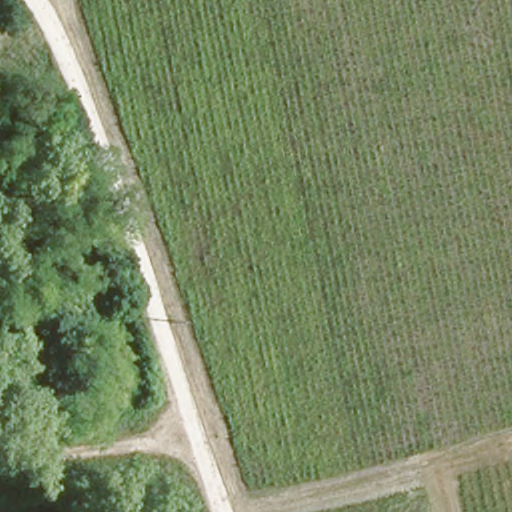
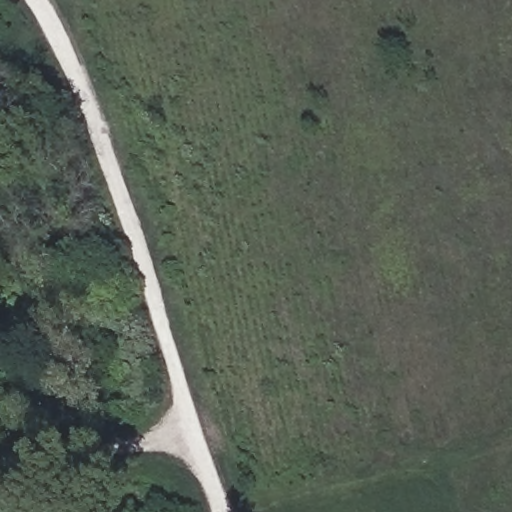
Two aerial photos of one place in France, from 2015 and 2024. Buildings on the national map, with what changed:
[]

